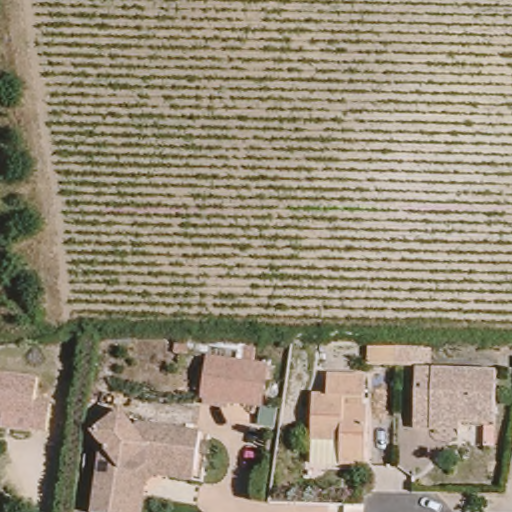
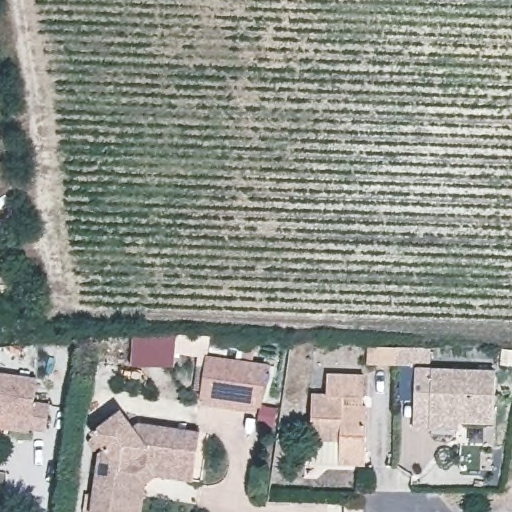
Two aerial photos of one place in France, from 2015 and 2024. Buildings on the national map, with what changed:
new [(174,339),(173,364),(133,363),(134,338),(174,339)]
unchanged [(412,362),(412,367),(399,367),(365,366),(364,349),(399,351),(422,351),(423,362),(412,362)]
unchanged [(237,363),(234,403),(200,399),(206,360),(237,363)]
unchanged [(234,403),(237,363),(266,366),(261,405),(234,403)]
unchanged [(493,370),(494,429),(412,430),(413,366),(493,370)]
unchanged [(344,445),(317,444),(317,397),(330,397),(330,374),(366,375),(367,395),(367,406),(371,406),(371,459),(370,473),(344,471),(344,458),(344,445)]
unchanged [(32,380),(28,403),(45,406),(40,433),(25,430),(26,420),(0,416),(0,375),(32,380)]
unchanged [(201,429),(195,462),(147,455),(132,466),(126,512),(87,512),(95,455),(102,448),(93,437),(122,414),(131,424),(138,418),(201,429)]
unchanged [(194,475),(153,469),(142,476),(136,512),(126,512),(132,466),(147,455),(195,462),(194,475)]

